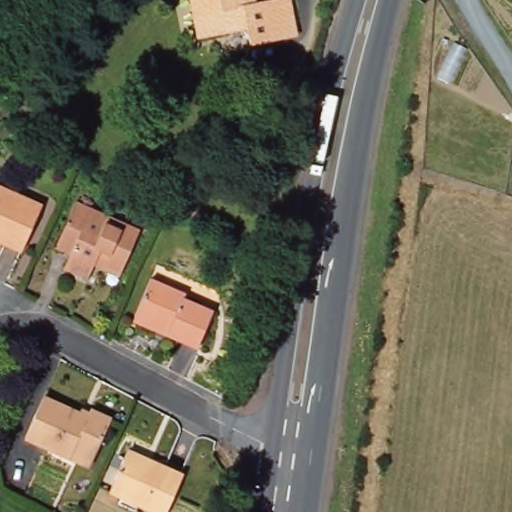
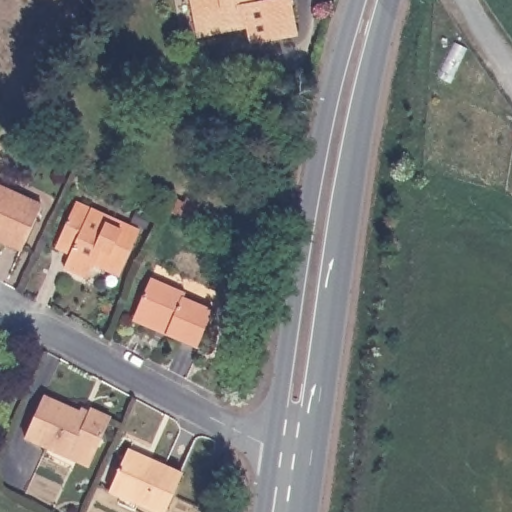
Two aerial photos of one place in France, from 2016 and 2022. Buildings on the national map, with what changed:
unchanged [(190,0),(248,0),(249,7),(285,1),(291,38),(247,46),(244,29),(197,37),(190,0)]
unchanged [(21,253),(0,244),(0,189),(41,207),(21,253)]
unchanged [(95,267),(88,282),(65,271),(71,257),(57,251),(77,205),(94,213),(123,226),(140,234),(122,275),(120,279),(95,267)]
unchanged [(171,213),(183,220),(186,215),(197,222),(195,226),(189,239),(165,226),(171,213)]
unchanged [(136,315),(152,278),(186,292),(184,297),(214,311),(197,348),(167,335),(134,319),(136,315)]
unchanged [(70,458),(27,439),(46,399),(89,419),(92,412),(107,418),(89,459),(85,465),(70,458)]
unchanged [(185,472),(168,512),(161,512),(141,502),(137,509),(122,501),(125,494),(112,489),(131,447),(185,472)]

